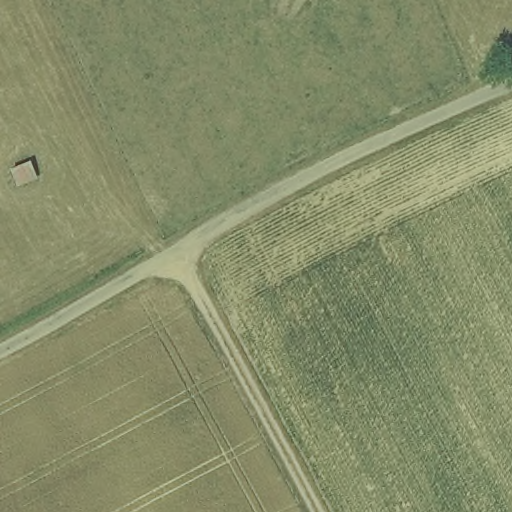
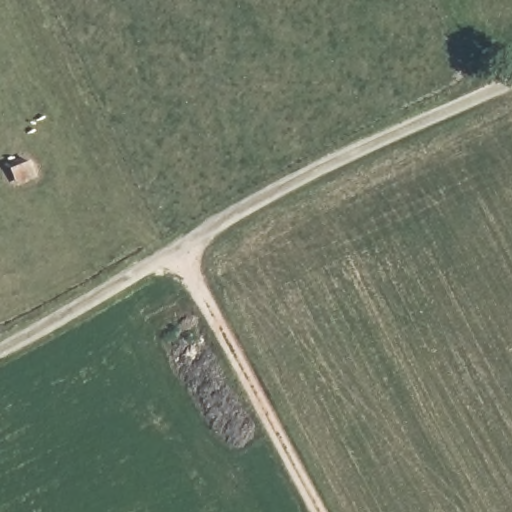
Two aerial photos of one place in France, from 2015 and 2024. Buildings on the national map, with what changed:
unchanged [(43,176),(20,188),(8,170),(33,155),(43,176)]

